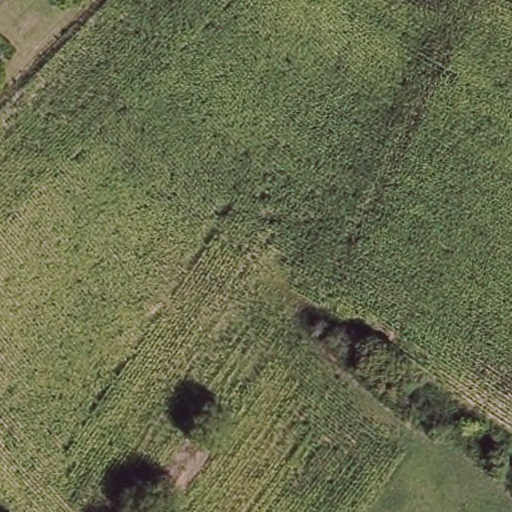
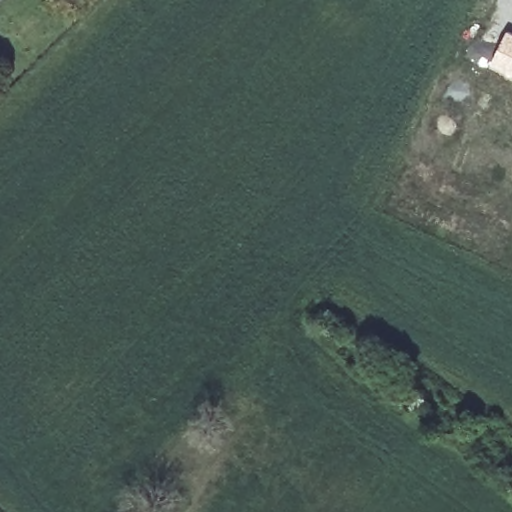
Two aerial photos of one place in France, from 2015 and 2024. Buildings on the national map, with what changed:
new [(512,31),(512,71),(492,61),(508,29),(512,31)]

